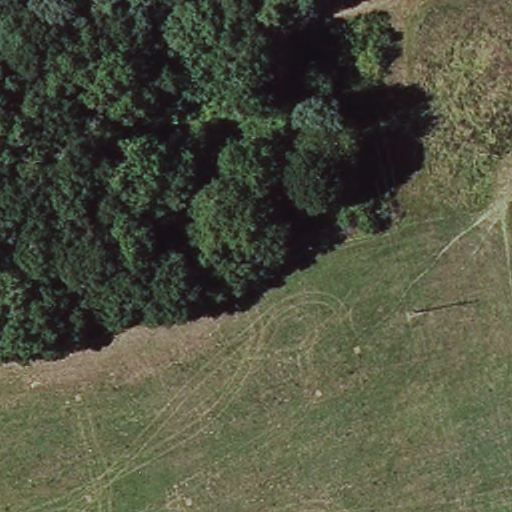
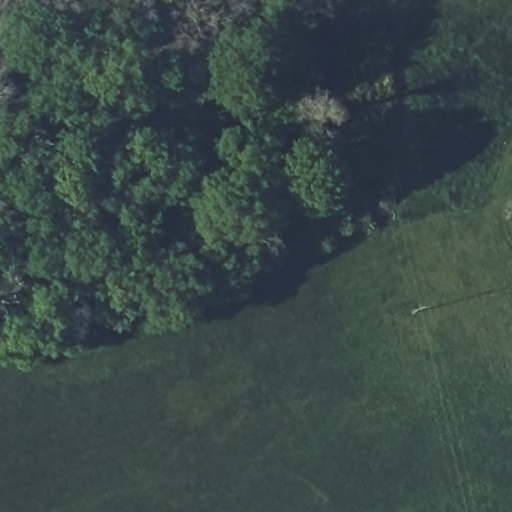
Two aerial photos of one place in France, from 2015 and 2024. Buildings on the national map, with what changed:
unchanged [(128,303),(127,290),(142,288),(144,301),(128,303)]

